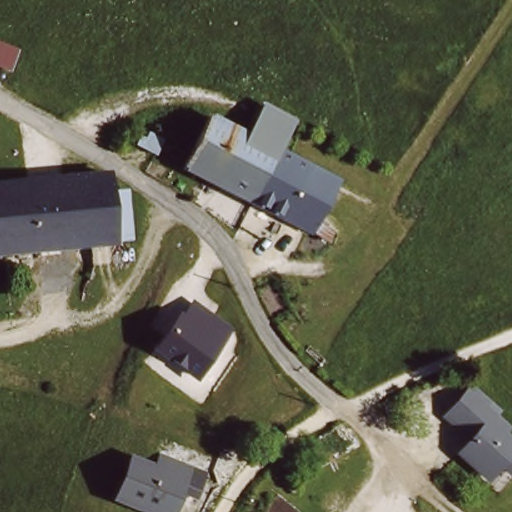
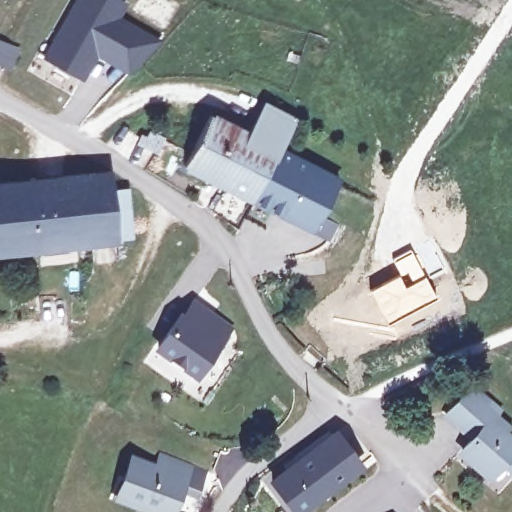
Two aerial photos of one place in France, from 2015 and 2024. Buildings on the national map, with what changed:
new [(80,0),(114,0),(124,6),(116,19),(157,43),(131,70),(98,51),(83,78),(48,58),(80,0)]
unchanged [(6,70),(0,68),(0,48),(13,53),(6,70)]
unchanged [(281,151),(258,194),(188,159),(211,117),(251,137),(266,106),(296,120),(281,151)]
unchanged [(173,133),(167,145),(148,136),(151,129),(157,132),(160,129),(173,133)]
unchanged [(334,232),(318,224),(258,194),(281,151),(340,181),(325,209),(340,223),(334,232)]
unchanged [(110,237),(0,252),(0,179),(98,171),(102,174),(110,237)]
unchanged [(205,384),(151,355),(188,302),(233,332),(205,384)]
unchanged [(512,439),(512,467),(508,463),(495,477),(465,452),(484,434),(477,427),(471,436),(450,416),(472,394),(500,416),(495,422),(512,439)]
new [(306,448),(336,426),(365,463),(301,512),(291,512),(266,481),(306,448)]
unchanged [(196,502),(181,497),(173,512),(140,512),(115,503),(132,454),(154,461),(158,454),(206,474),(196,502)]

